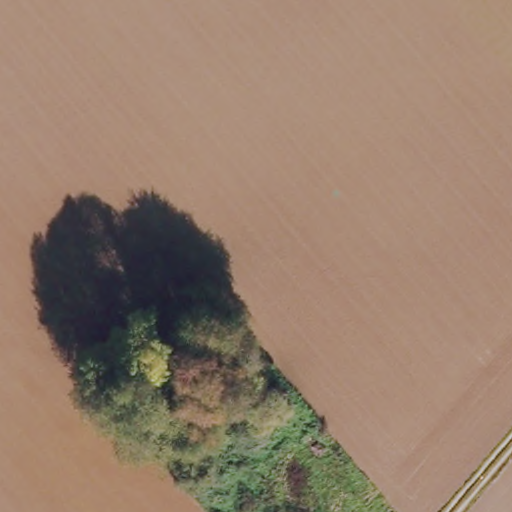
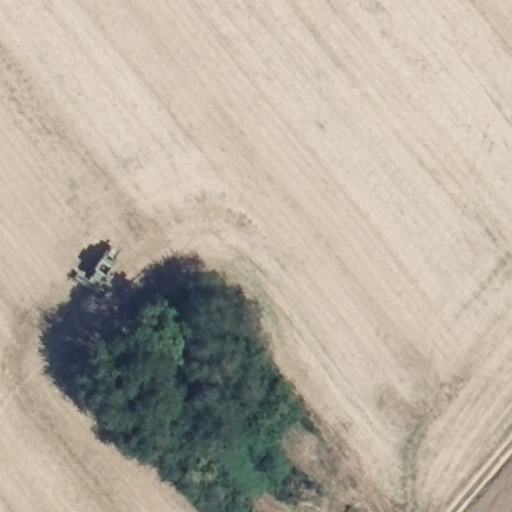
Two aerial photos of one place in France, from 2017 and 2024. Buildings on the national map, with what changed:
unchanged [(178,394),(167,409),(139,389),(150,374),(178,394)]

